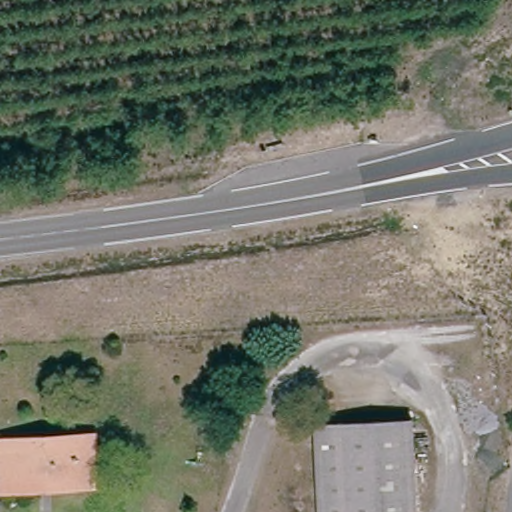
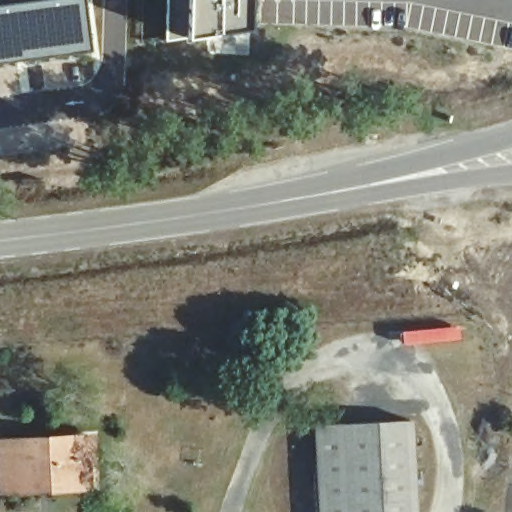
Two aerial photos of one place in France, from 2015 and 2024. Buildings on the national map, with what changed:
new [(0,61),(0,0),(85,0),(90,51),(0,61)]
new [(208,38),(164,41),(165,0),(251,0),(249,28),(248,55),(208,54),(208,38)]
unchanged [(315,427),(411,422),(417,512),(321,512),(315,427)]
unchanged [(94,460),(88,460),(89,489),(2,493),(0,453),(0,443),(94,438),(94,460)]

